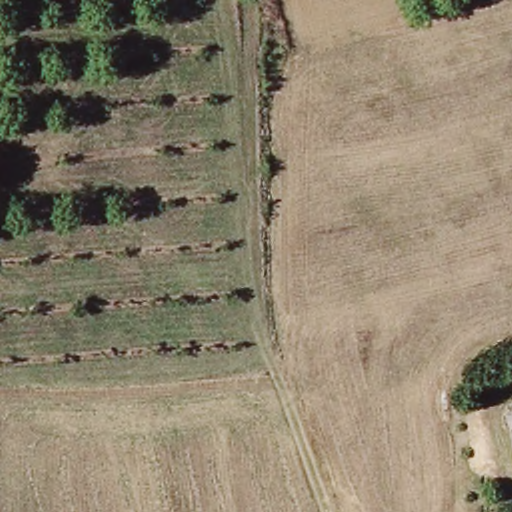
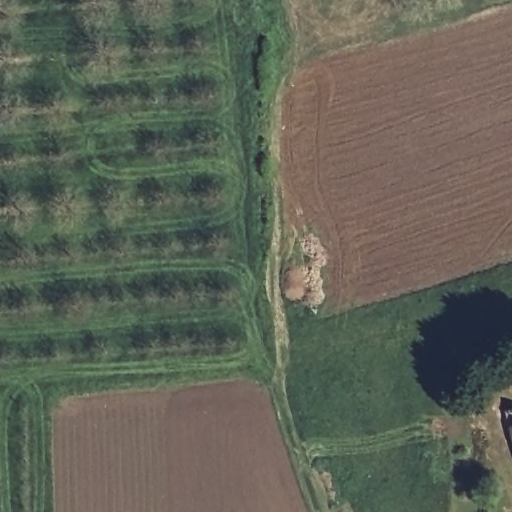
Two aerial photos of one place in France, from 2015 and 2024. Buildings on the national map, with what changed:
unchanged [(512,401),(512,449),(502,403),(512,401)]

